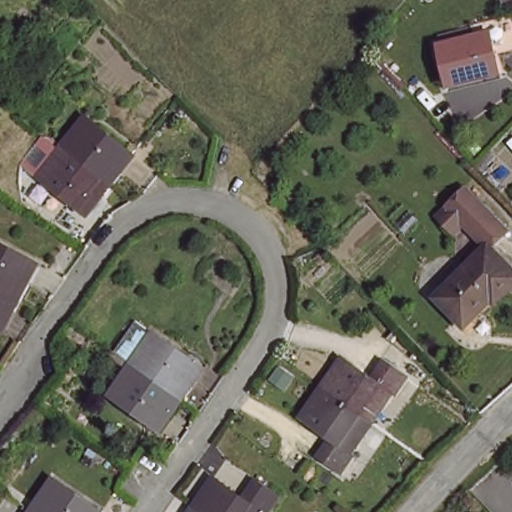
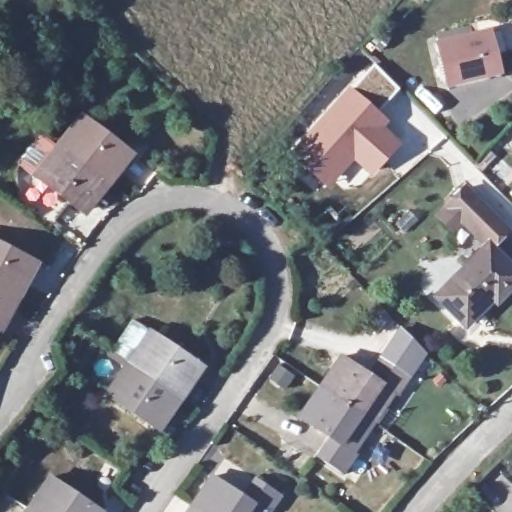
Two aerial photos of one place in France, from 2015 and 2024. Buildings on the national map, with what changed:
unchanged [(500,84),(442,95),(432,47),(490,34),(500,84)]
new [(373,63),(400,89),(378,110),(349,85),(373,63)]
new [(349,85),(378,110),(390,121),(385,127),(402,142),(372,178),(353,161),(328,190),(285,156),(349,85)]
unchanged [(80,214),(31,179),(55,150),(80,119),(126,155),(110,172),(118,179),(107,192),(100,200),(93,195),(80,214)]
unchanged [(510,234),(493,251),(512,269),(512,294),(502,305),(498,301),(473,328),(444,301),(491,250),(465,226),(456,236),(440,221),(448,211),(465,192),(510,234)]
unchanged [(0,250),(32,268),(22,284),(30,290),(20,306),(15,315),(7,310),(0,322),(0,250)]
unchanged [(152,421),(102,383),(123,355),(145,322),(193,358),(180,375),(189,382),(180,395),(172,407),(163,401),(152,421)]
unchanged [(337,483),(310,460),(323,441),(300,420),(324,390),(345,362),(370,380),(384,361),(410,386),(413,389),(398,407),(393,403),(374,428),(348,461),(352,464),(337,483)]
unchanged [(28,511),(52,480),(96,512),(28,512),(28,511)]
unchanged [(191,509),(212,480),(240,501),(255,482),(283,505),(278,512),(189,512),(191,509)]

